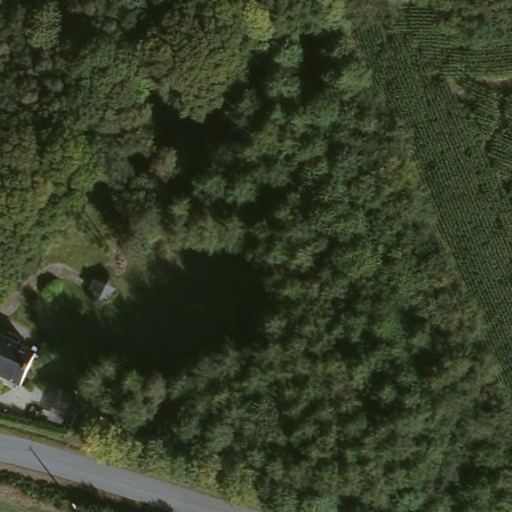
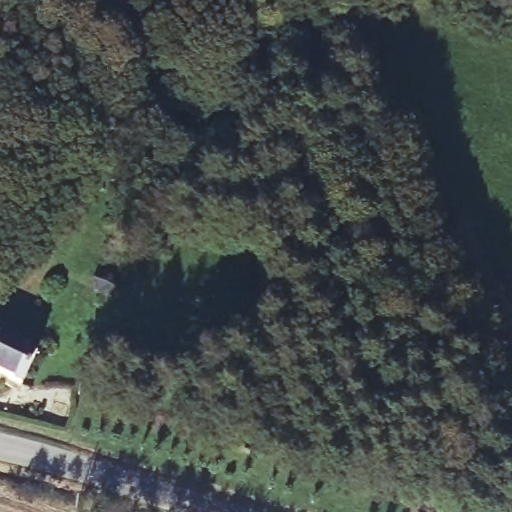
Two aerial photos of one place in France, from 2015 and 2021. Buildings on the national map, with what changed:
unchanged [(18,339),(29,343),(27,348),(45,356),(31,388),(0,375),(0,336),(16,343),(18,339)]

